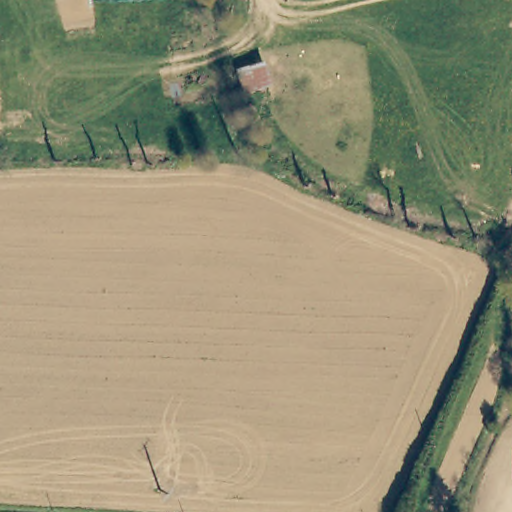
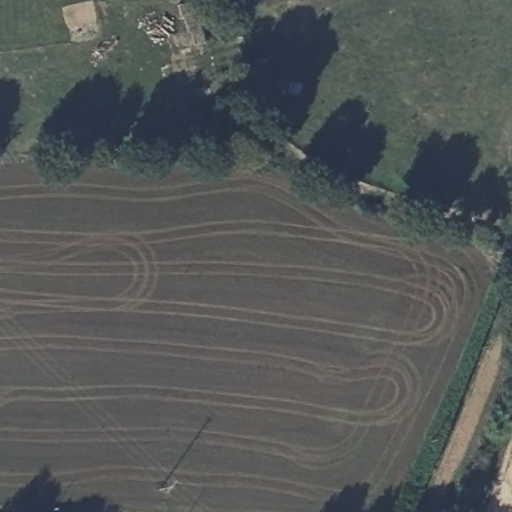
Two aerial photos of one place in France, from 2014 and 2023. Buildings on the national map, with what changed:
unchanged [(257,61),(264,86),(241,92),(234,68),(257,61)]

